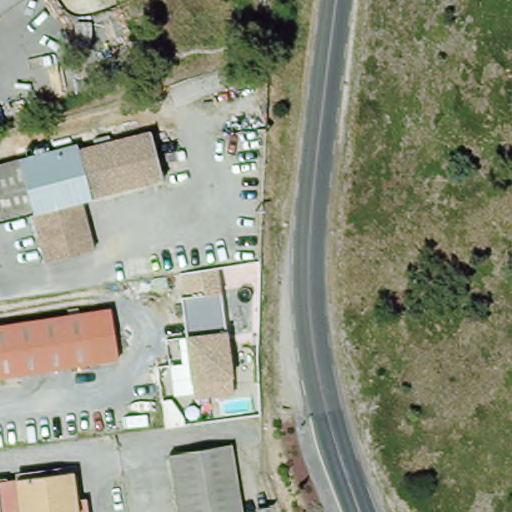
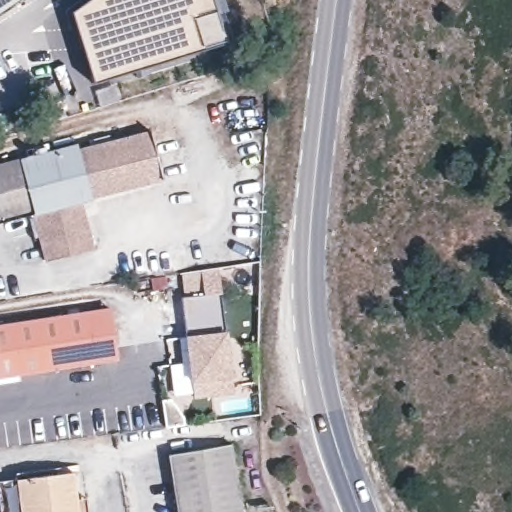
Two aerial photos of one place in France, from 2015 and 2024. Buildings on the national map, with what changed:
unchanged [(0,10),(0,0),(15,0),(0,10)]
new [(86,0),(219,0),(229,34),(91,74),(72,10),(86,0)]
new [(254,59),(260,79),(230,88),(224,69),(254,59)]
unchanged [(82,139),(85,146),(155,130),(164,176),(85,205),(83,200),(72,142),(82,139)]
unchanged [(44,261),(33,216),(0,224),(0,162),(72,142),(83,200),(85,205),(101,249),(44,261)]
unchanged [(239,395),(196,398),(186,301),(225,296),(239,395)]
unchanged [(0,379),(0,325),(114,307),(124,361),(0,379)]
new [(174,398),(187,416),(187,426),(167,429),(163,400),(174,398)]
unchanged [(181,512),(174,453),(235,445),(243,512),(181,512)]
unchanged [(91,497),(92,512),(22,512),(20,477),(74,472),(76,498),(91,497)]
unchanged [(2,512),(0,478),(20,477),(22,512),(2,512)]

